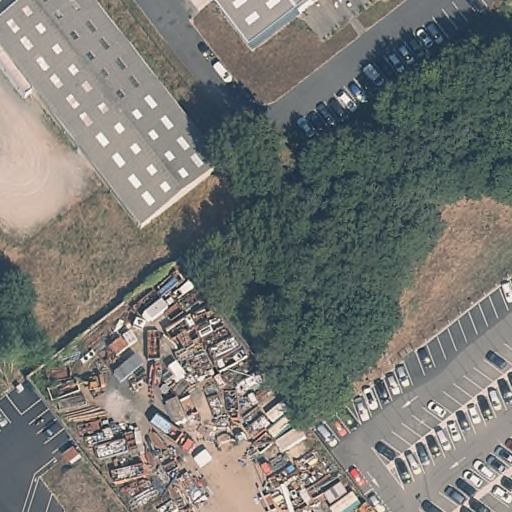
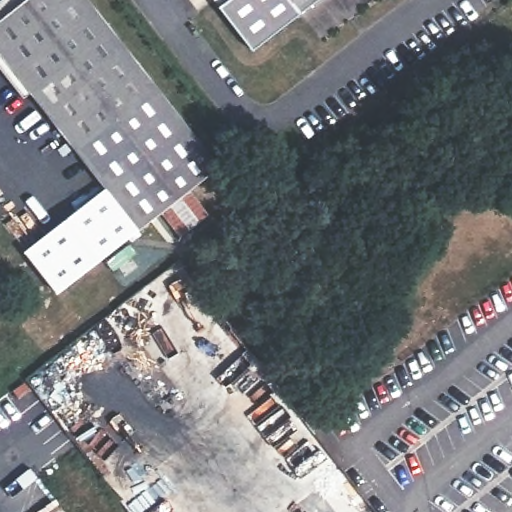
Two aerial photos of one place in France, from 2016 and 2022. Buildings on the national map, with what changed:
unchanged [(35,107),(0,64),(0,16),(20,0),(90,0),(210,156),(130,219),(42,101),(35,107)]
unchanged [(229,0),(317,0),(251,52),(217,9),(229,0)]
new [(107,188),(130,219),(210,156),(219,170),(191,191),(210,214),(180,238),(160,215),(56,295),(22,253),(107,188)]

